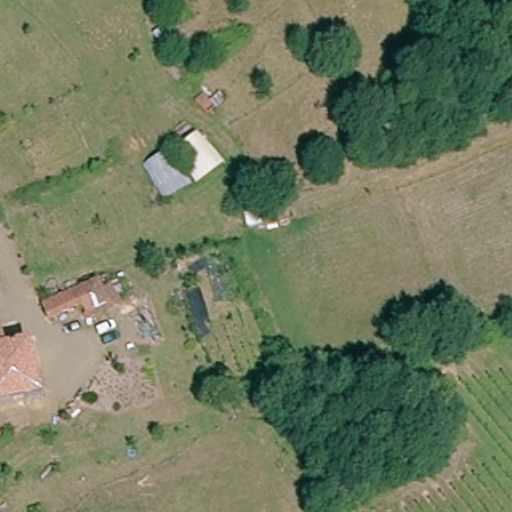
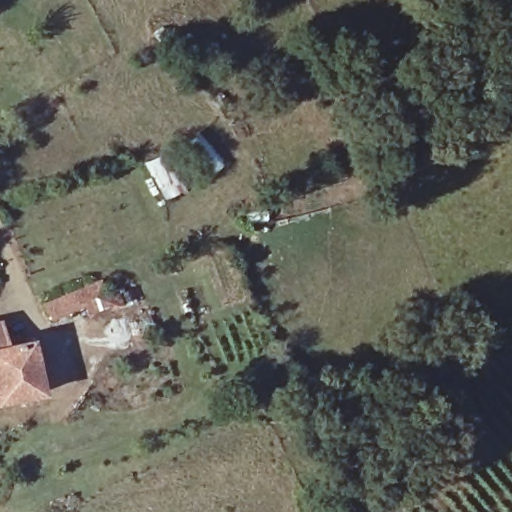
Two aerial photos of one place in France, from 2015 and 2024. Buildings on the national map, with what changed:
unchanged [(111,277),(122,304),(99,313),(95,303),(55,319),(49,303),(106,279),(111,277)]
unchanged [(2,325),(9,353),(35,346),(45,394),(0,405),(0,326),(2,325)]

